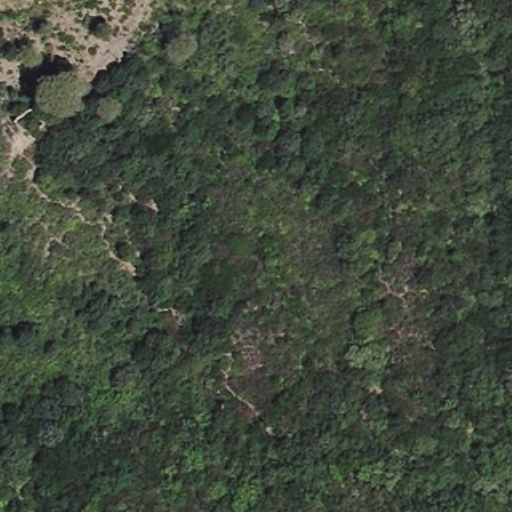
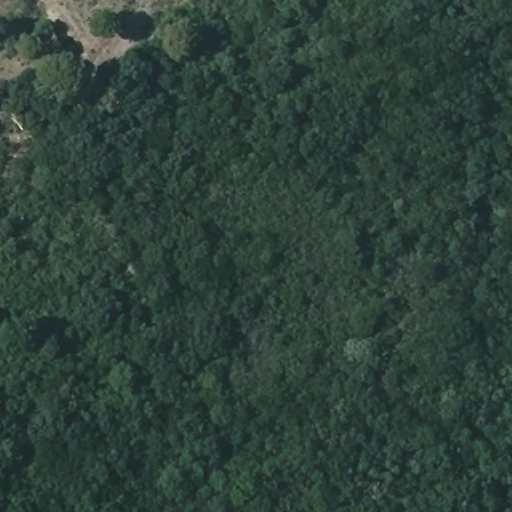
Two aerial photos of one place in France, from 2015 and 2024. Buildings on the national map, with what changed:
[]

